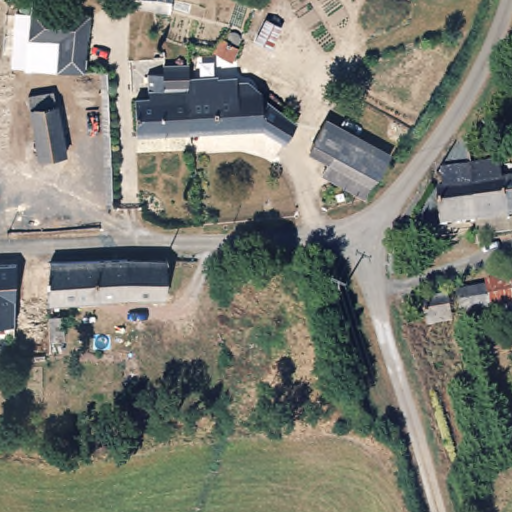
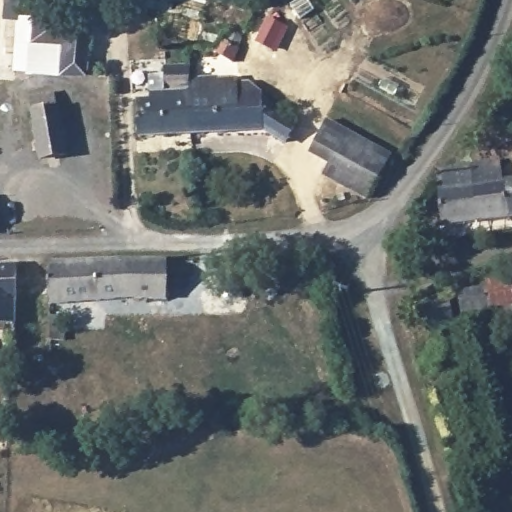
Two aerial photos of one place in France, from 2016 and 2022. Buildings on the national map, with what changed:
unchanged [(34,14),(35,1),(93,10),(87,77),(10,68),(14,12),(34,14)]
unchanged [(185,62),(187,94),(189,130),(135,135),(133,96),(151,95),(150,85),(147,85),(147,73),(161,72),(161,64),(185,62)]
unchanged [(278,140),(257,125),(189,130),(187,94),(194,93),(193,79),(231,76),(231,80),(245,79),(246,88),(258,87),(258,95),(290,120),(278,140)]
unchanged [(59,89),(69,159),(37,161),(30,94),(59,89)]
unchanged [(309,154),(328,119),(390,150),(377,175),(330,152),(325,164),(309,154)]
unchanged [(377,175),(366,196),(320,174),(325,164),(330,152),(377,175)]
unchanged [(502,160),(505,179),(509,178),(512,197),(512,213),(479,219),(471,165),(502,160)]
unchanged [(471,165),(479,219),(445,224),(440,191),(440,189),(447,187),(445,169),(471,165)]
unchanged [(509,178),(512,178),(512,197),(509,178)]
unchanged [(166,256),(167,297),(124,297),(54,303),(54,298),(53,260),(166,256)]
unchanged [(15,299),(15,322),(0,323),(0,262),(15,261),(15,299)]
unchanged [(503,330),(499,310),(497,302),(490,304),(491,311),(462,317),(458,300),(487,294),(486,288),(495,286),(512,282),(512,329),(503,330)]
unchanged [(448,302),(454,325),(430,330),(428,325),(425,307),(448,302)]
unchanged [(62,314),(64,340),(49,340),(49,314),(62,314)]

